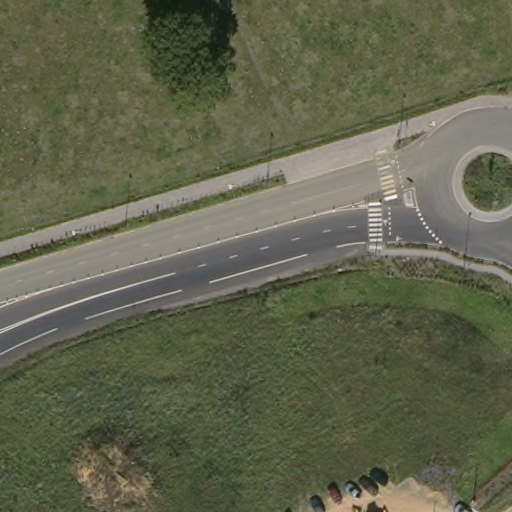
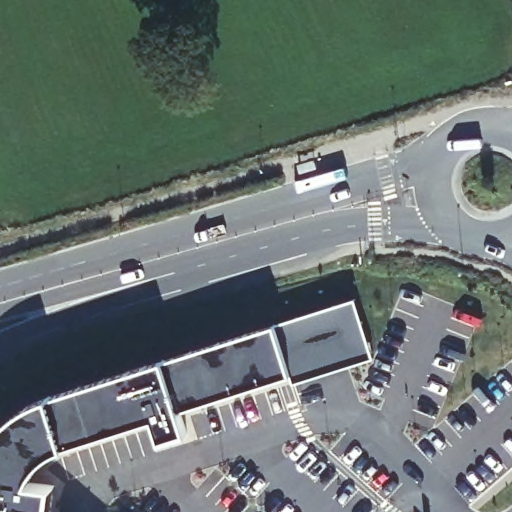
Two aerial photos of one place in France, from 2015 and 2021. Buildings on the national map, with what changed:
new [(0,432),(4,427),(25,410),(49,398),(164,362),(274,327),(354,300),(373,360),(293,385),(290,376),(179,410),(188,434),(161,442),(154,419),(65,449),(56,453),(45,461),(35,471),(30,485),(54,488),(51,512),(35,512),(27,511),(27,512),(0,512),(0,432)]

